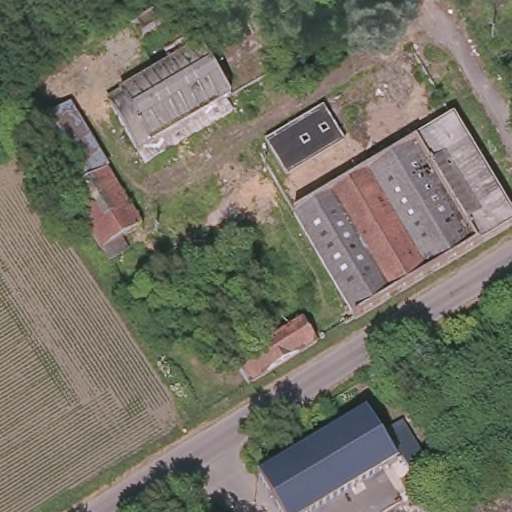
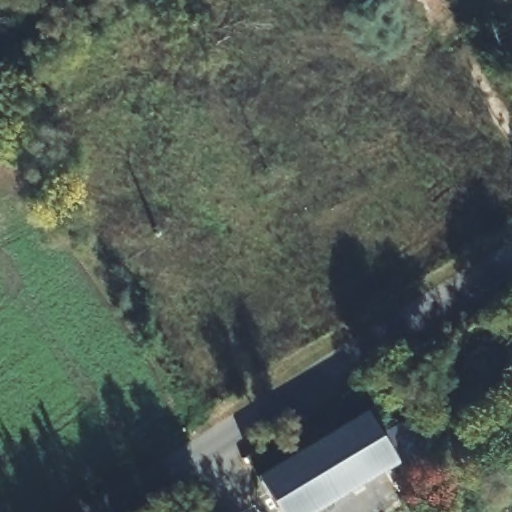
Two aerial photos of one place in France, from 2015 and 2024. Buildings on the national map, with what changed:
demolished [(167,56),(161,45),(187,30),(195,44),(187,49),(218,102),(215,103),(221,116),(145,161),(106,96),(167,56)]
demolished [(320,107),(343,142),(280,175),(262,142),(320,107)]
demolished [(52,171),(31,135),(71,110),(144,234),(103,258),(52,171)]
demolished [(355,318),(333,282),(311,296),(298,276),(320,261),(294,216),(450,119),(512,220),(355,318)]
demolished [(193,226),(202,242),(170,260),(161,245),(193,226)]
demolished [(260,301),(272,318),(275,316),(283,329),(301,318),(316,342),(283,363),(250,307),(260,301)]
demolished [(283,363),(249,384),(236,361),(254,349),(246,335),(250,332),(239,314),(250,307),(283,363)]
unchanged [(299,512),(283,512),(259,472),(364,409),(392,457),(299,512)]

